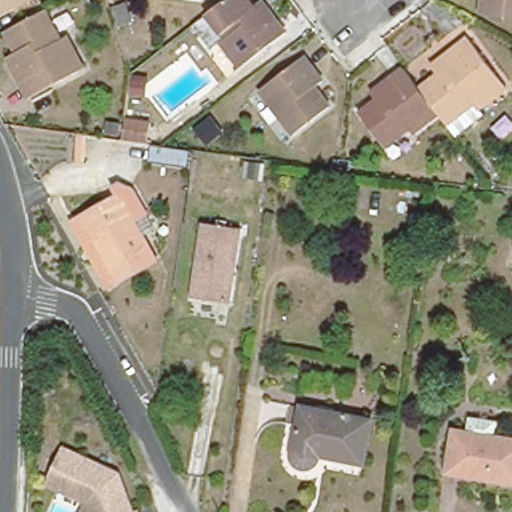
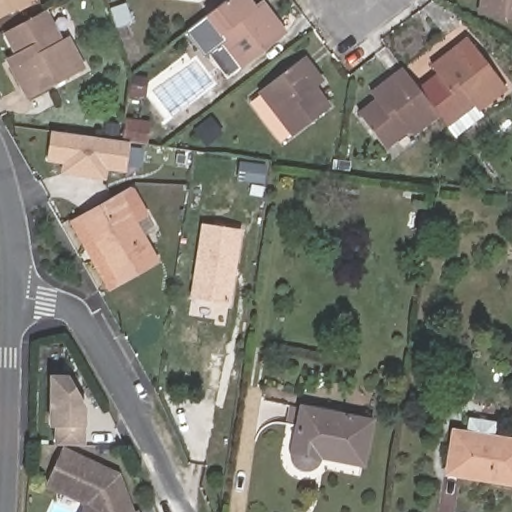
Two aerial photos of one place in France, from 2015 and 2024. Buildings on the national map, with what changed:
unchanged [(28,0),(0,15),(0,0),(28,0)]
unchanged [(255,0),(260,6),(265,2),(270,9),(292,36),(248,69),(227,43),(217,51),(196,26),(211,15),(231,0),(255,0)]
unchanged [(477,0),(512,0),(512,17),(475,11),(477,0)]
unchanged [(17,56),(5,33),(44,12),(59,43),(67,39),(83,70),(28,99),(11,69),(7,61),(17,56)]
unchanged [(456,136),(446,124),(438,113),(418,87),(437,73),(432,66),(439,61),(468,40),(507,89),(478,111),(482,116),(456,136)]
unchanged [(304,58),(323,81),(315,88),(331,109),(295,137),(260,91),(304,58)]
unchanged [(407,126),(382,146),(356,111),(375,97),(370,91),(377,86),(403,67),(418,87),(438,113),(412,133),(407,126)]
unchanged [(116,118),(142,123),(139,142),(113,138),(116,118)]
new [(129,141),(129,146),(143,149),(140,167),(127,165),(125,173),(107,170),(105,181),(60,174),(62,164),(47,162),(49,131),(129,141)]
unchanged [(151,148),(189,154),(187,166),(150,161),(151,148)]
unchanged [(265,166),(262,184),(237,180),(240,162),(265,166)]
new [(132,186),(149,216),(137,223),(159,262),(108,292),(69,221),(76,217),(111,277),(150,256),(117,194),(132,186)]
unchanged [(115,191),(150,256),(111,277),(74,214),(115,191)]
unchanged [(240,234),(229,308),(192,303),(203,228),(240,234)]
new [(50,374),(68,374),(86,408),(86,428),(86,446),(78,446),(67,440),(65,445),(54,444),(54,427),(49,426),(50,374)]
unchanged [(363,465),(319,456),(319,459),(318,461),(317,463),(316,465),(314,466),(312,467),(310,468),(308,469),(305,469),(303,469),(301,468),(299,468),(297,466),(295,465),(294,463),(293,461),(292,459),(292,457),(292,455),(292,453),(292,451),(301,406),(372,420),(363,465)]
unchanged [(446,472),(453,429),(466,431),(512,439),(512,483),(460,474),(446,472)]
unchanged [(62,450),(65,445),(67,440),(78,446),(116,465),(132,512),(92,512),(86,494),(60,479),(52,474),(62,450)]

